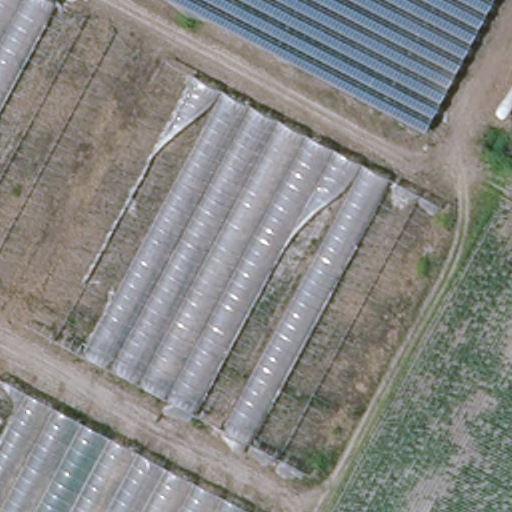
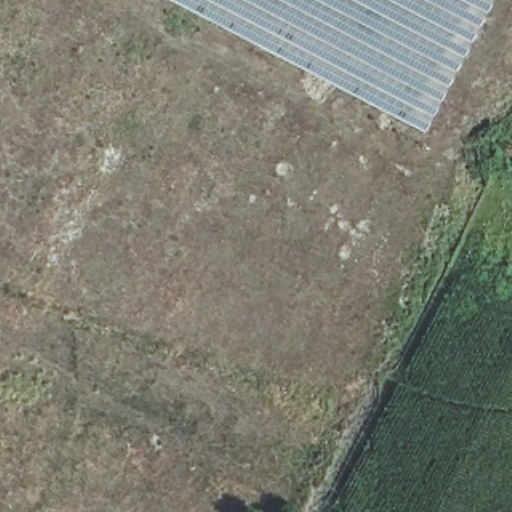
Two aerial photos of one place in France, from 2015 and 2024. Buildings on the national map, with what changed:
demolished [(0,167),(0,0),(49,0),(80,16),(0,167)]
unchanged [(179,0),(491,0),(423,127),(179,0)]
demolished [(412,192),(275,457),(56,338),(194,80),(412,192)]
demolished [(254,512),(0,512),(0,378),(254,512)]

